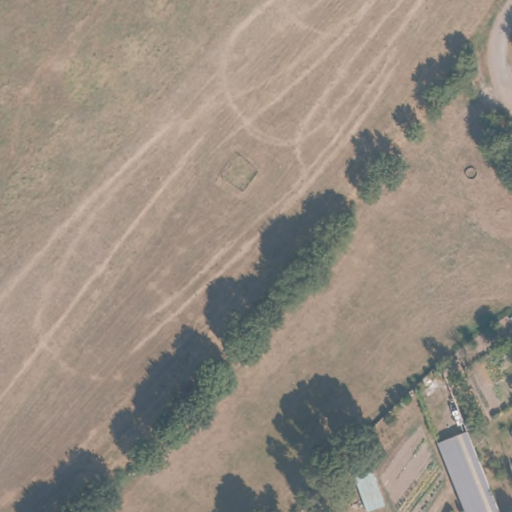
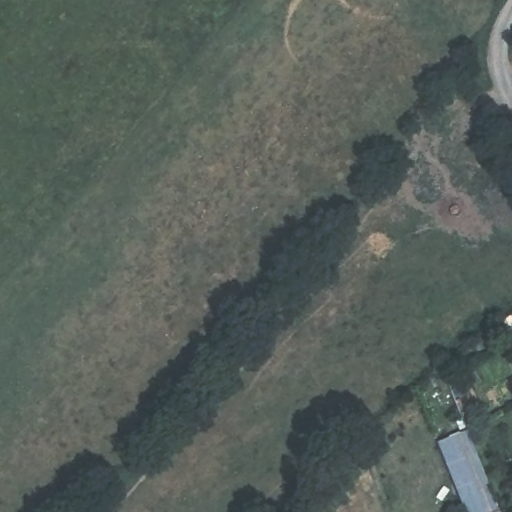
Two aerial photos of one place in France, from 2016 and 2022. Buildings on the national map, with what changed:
unchanged [(443,451),(473,440),(500,512),(466,512),(443,451)]

